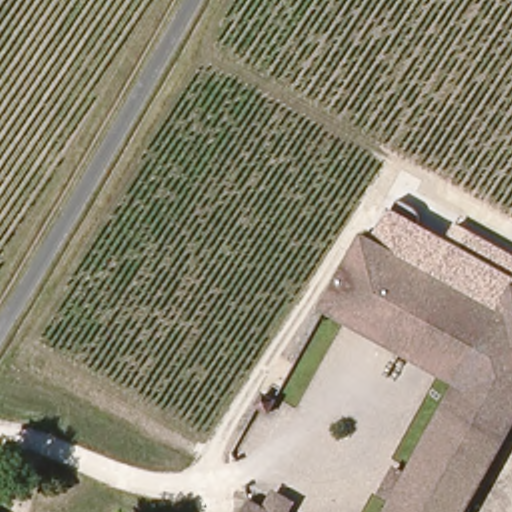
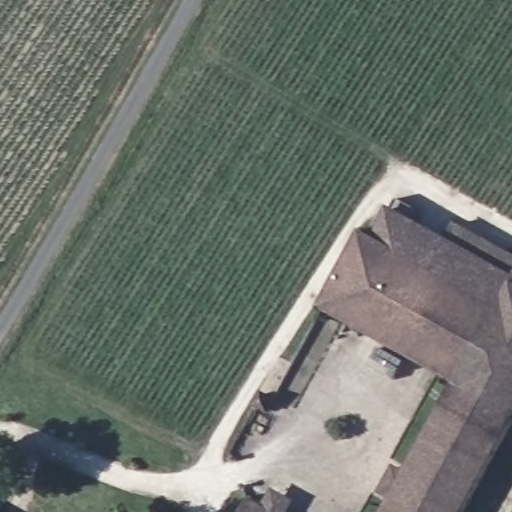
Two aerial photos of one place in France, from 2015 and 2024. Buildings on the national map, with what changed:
unchanged [(391,207),(393,209),(399,200),(422,212),(416,222),(449,239),(458,224),(512,255),(512,286),(507,296),(502,305),(374,232),(391,207)]
unchanged [(393,498),(377,490),(391,463),(407,472),(460,378),(325,303),(323,302),(365,227),(374,232),(502,305),(507,296),(512,286),(512,427),(465,512),(385,512),(393,498)]
unchanged [(266,410),(252,401),(262,386),(276,395),(266,410)]
unchanged [(264,475),(282,485),(317,505),(313,512),(243,512),(264,475)]

